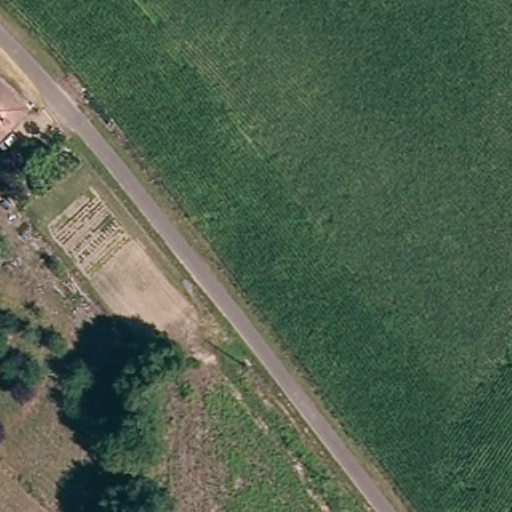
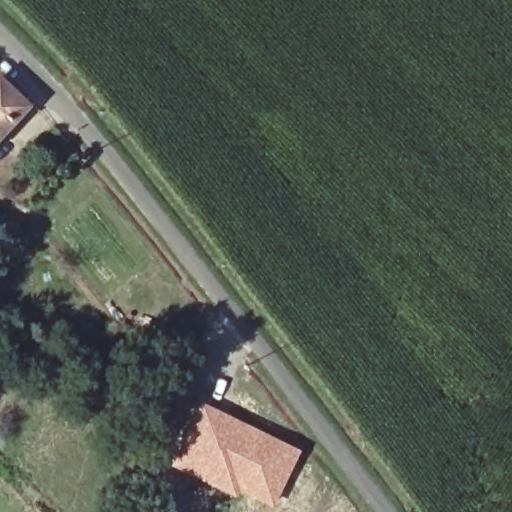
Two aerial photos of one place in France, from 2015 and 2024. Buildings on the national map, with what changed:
unchanged [(18,107),(0,129),(0,91),(18,107)]
new [(295,450),(271,501),(235,484),(240,474),(200,454),(205,446),(186,437),(202,405),(295,450)]

